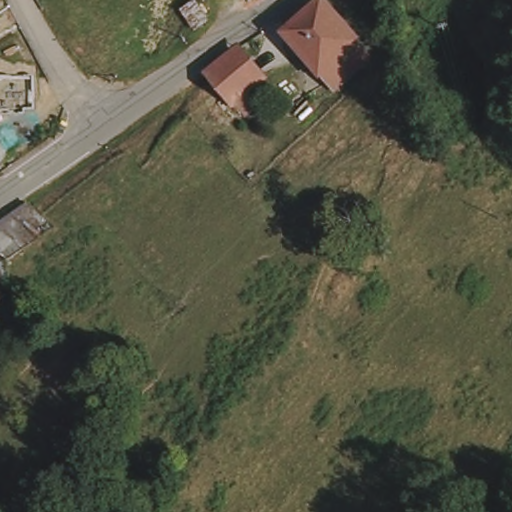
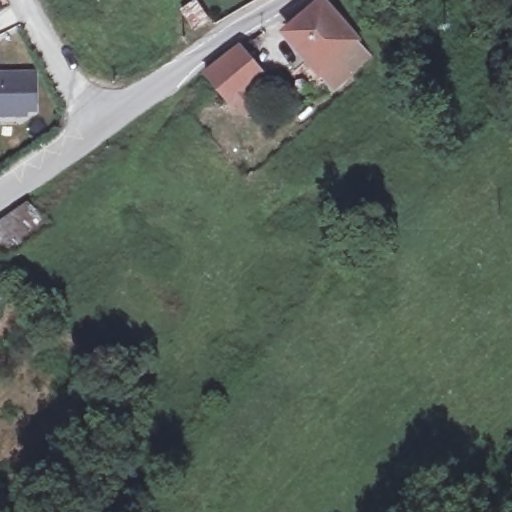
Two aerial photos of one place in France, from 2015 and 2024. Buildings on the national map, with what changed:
unchanged [(196,30),(183,9),(197,0),(211,21),(196,30)]
unchanged [(317,0),(327,0),(373,56),(336,88),(285,29),(317,0)]
unchanged [(238,101),(237,102),(209,64),(241,42),(269,80),(254,90),(262,100),(246,112),(238,101)]
new [(37,114),(28,114),(28,118),(0,118),(0,72),(36,71),(37,114)]
unchanged [(38,233),(22,245),(9,255),(0,246),(0,217),(10,209),(28,195),(54,220),(38,233)]
unchanged [(0,301),(0,299),(1,300),(0,301)]

